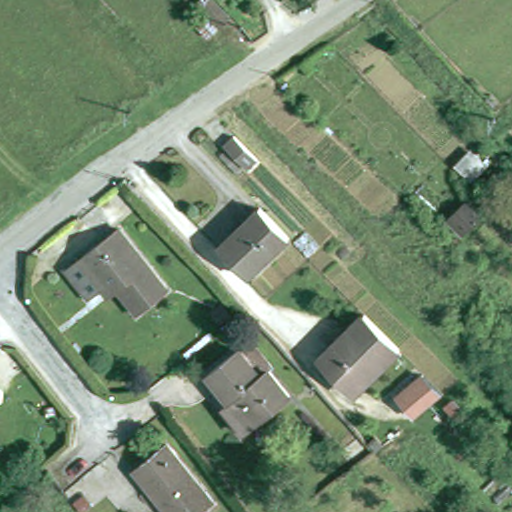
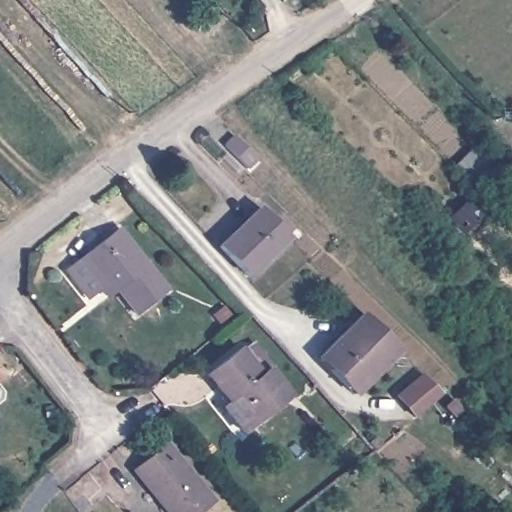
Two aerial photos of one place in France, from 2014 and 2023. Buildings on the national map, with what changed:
unchanged [(193,3),(196,0),(213,0),(228,16),(216,27),(193,3)]
unchanged [(186,21),(197,11),(215,30),(204,40),(186,21)]
unchanged [(220,144),(230,134),(253,157),(243,167),(220,144)]
unchanged [(469,178),(458,166),(454,162),(469,147),(473,151),(484,163),(469,178)]
unchanged [(461,235),(448,223),(445,220),(467,198),(470,201),(482,213),(461,235)]
unchanged [(292,242),(251,282),(221,250),(264,211),(292,242)]
unchanged [(109,289),(108,287),(96,297),(75,270),(87,261),(86,260),(126,229),(174,290),(144,312),(125,289),(116,296),(109,289)]
unchanged [(410,349),(362,396),(325,357),(348,334),(354,327),(371,311),(410,349)]
unchanged [(253,431),(211,378),(245,351),(248,356),(259,348),(275,370),(273,372),(294,399),(253,431)]
unchanged [(441,391),(419,417),(393,394),(416,371),(441,391)]
unchanged [(0,384),(7,393),(0,398),(0,379),(3,383),(0,384)]
unchanged [(196,512),(168,512),(132,469),(165,443),(211,500),(196,512)]

